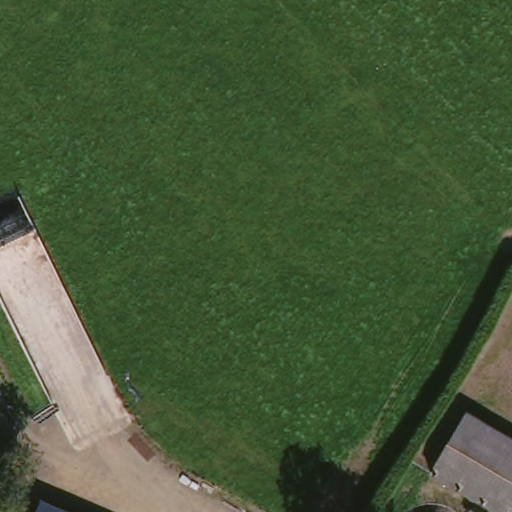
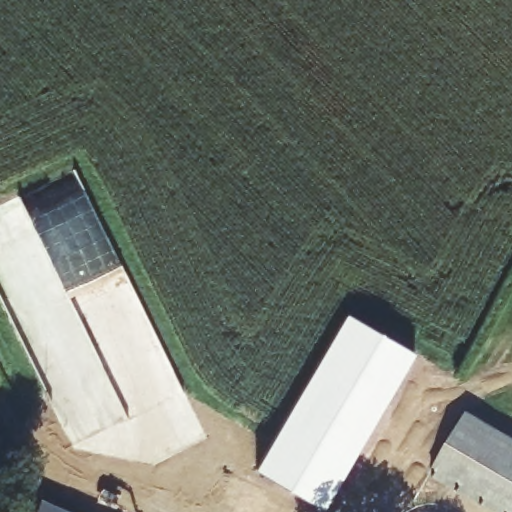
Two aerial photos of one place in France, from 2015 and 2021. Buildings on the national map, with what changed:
new [(351,315),(416,356),(403,378),(321,510),(256,469),(351,315)]
unchanged [(512,438),(512,512),(498,512),(428,466),(466,408),(512,438)]
unchanged [(76,512),(31,512),(38,494),(76,512)]

